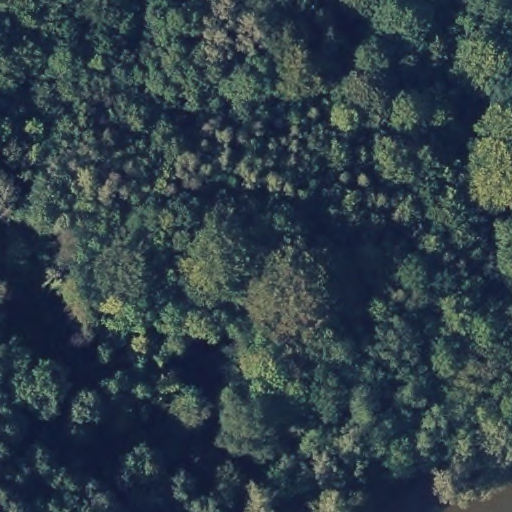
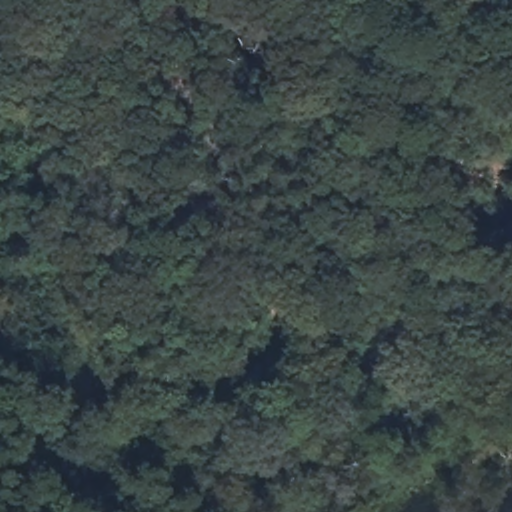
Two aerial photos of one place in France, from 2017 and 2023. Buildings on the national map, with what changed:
[]

